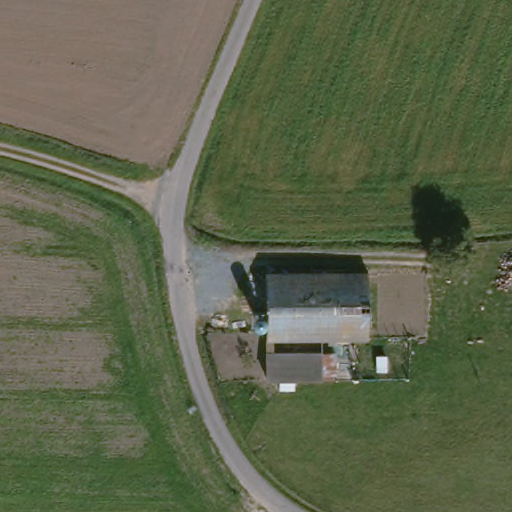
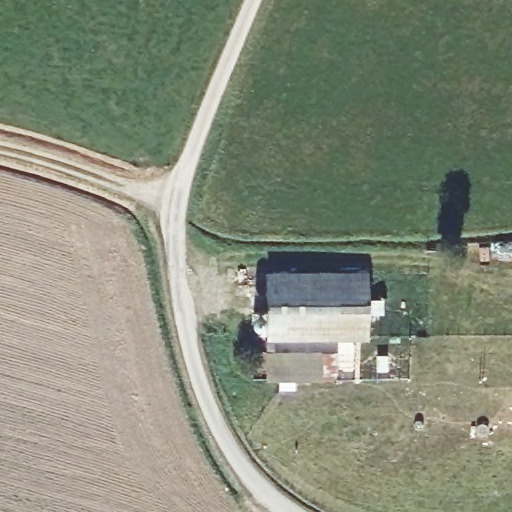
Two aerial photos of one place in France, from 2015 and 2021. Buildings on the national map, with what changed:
unchanged [(368,278),(368,339),(267,339),(267,317),(253,317),(253,299),(266,299),(267,277),(368,278)]
unchanged [(326,388),(271,388),(270,359),(325,359),(326,388)]

